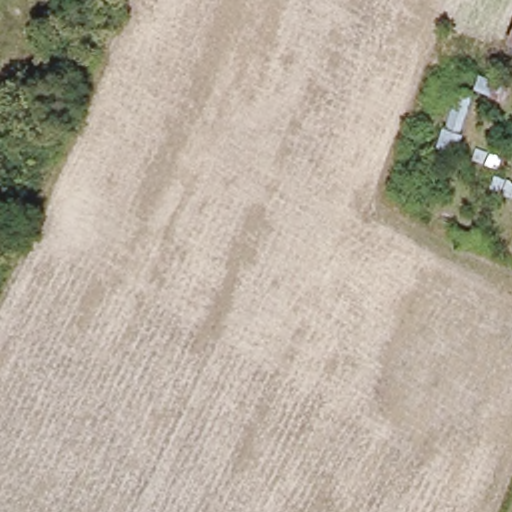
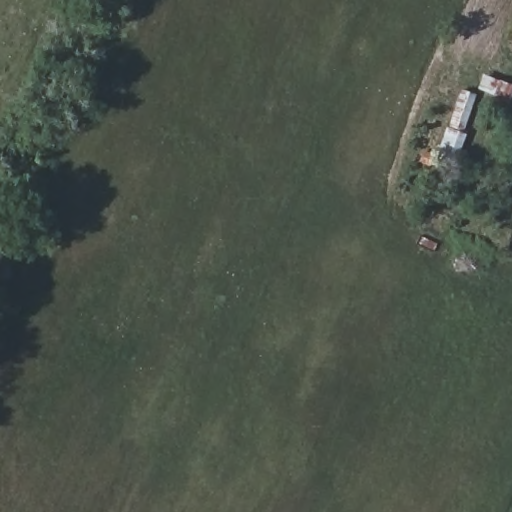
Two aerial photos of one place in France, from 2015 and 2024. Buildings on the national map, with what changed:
unchanged [(459,85),(479,91),(455,162),(436,154),(459,85)]

